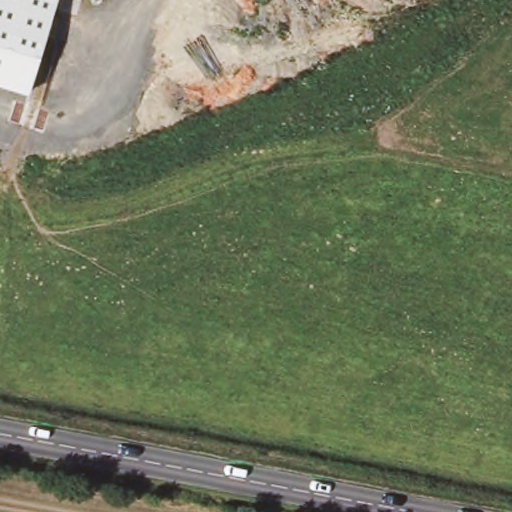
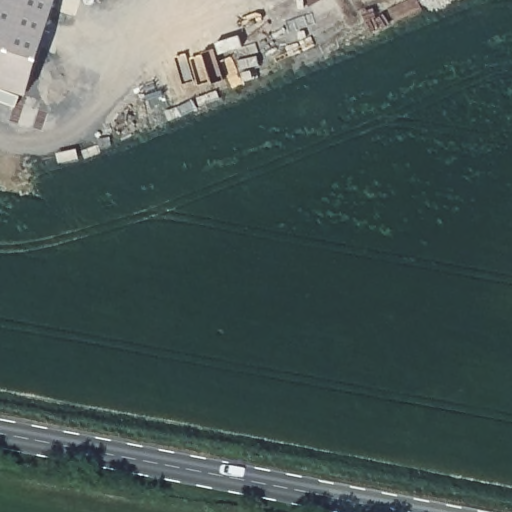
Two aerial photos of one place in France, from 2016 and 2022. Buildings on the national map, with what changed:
unchanged [(0,85),(0,0),(56,0),(29,94),(0,85)]

